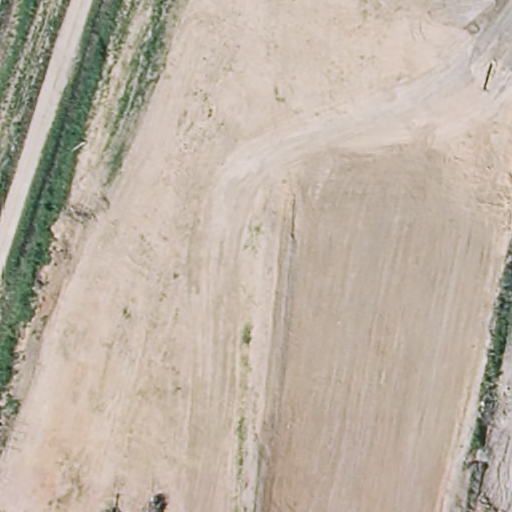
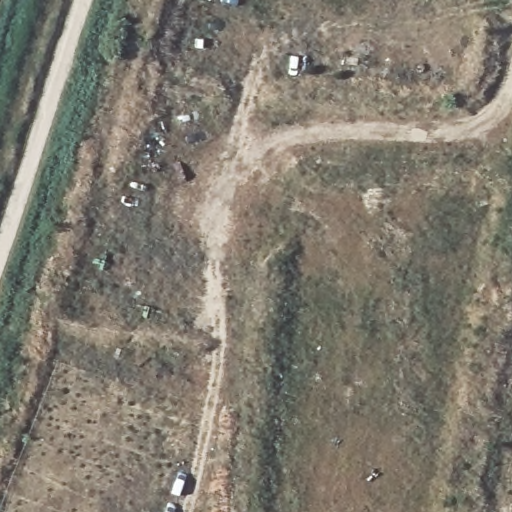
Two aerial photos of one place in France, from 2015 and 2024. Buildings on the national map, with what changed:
[]

